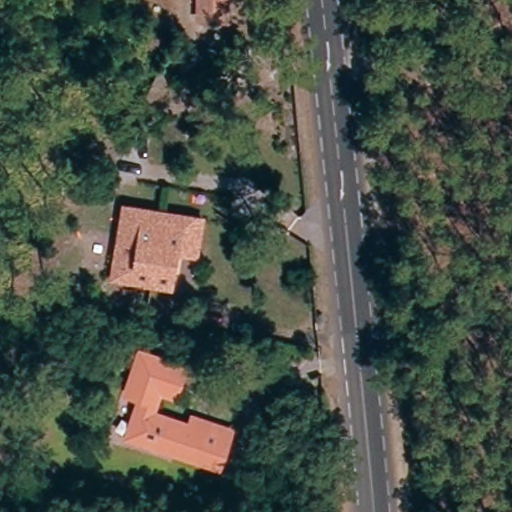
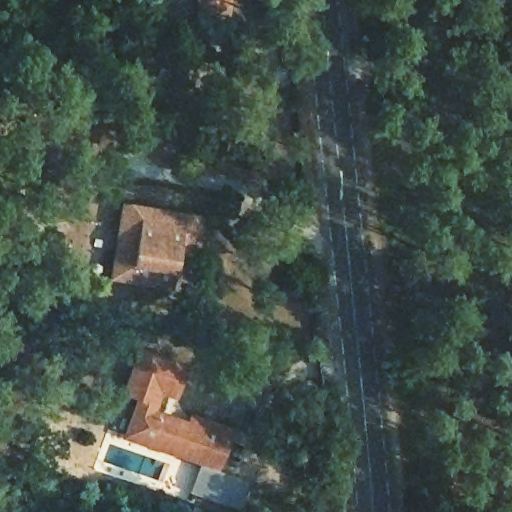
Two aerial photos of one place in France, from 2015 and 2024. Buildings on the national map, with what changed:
unchanged [(198,0),(229,0),(228,26),(198,25),(198,0)]
unchanged [(204,220),(196,262),(176,258),(170,293),(108,285),(120,208),(204,220)]
unchanged [(225,438),(213,473),(122,442),(135,402),(121,397),(134,358),(177,373),(168,400),(152,394),(144,419),(185,433),(188,426),(225,438)]

